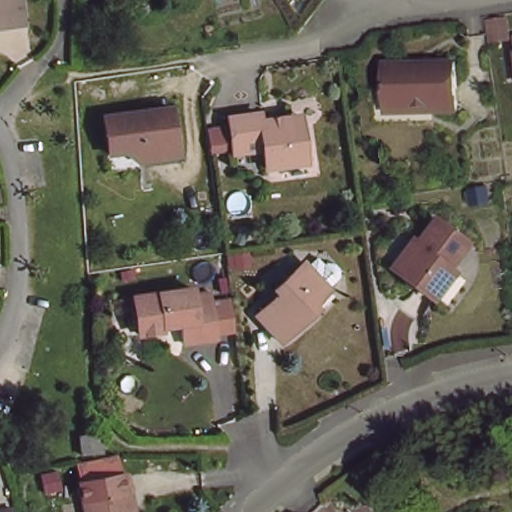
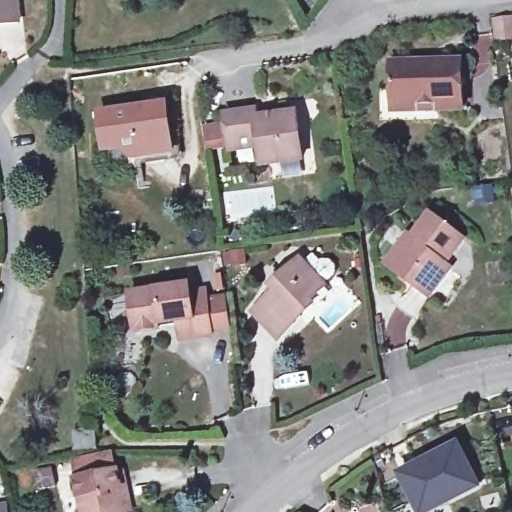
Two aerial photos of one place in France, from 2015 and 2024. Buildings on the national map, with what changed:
unchanged [(13,0),(15,28),(0,30),(0,0),(13,0)]
unchanged [(390,106),(391,64),(460,62),(460,112),(435,111),(390,111),(390,106)]
unchanged [(170,153),(132,160),(118,150),(100,151),(96,116),(163,106),(170,153)]
unchanged [(231,152),(230,148),(213,150),(211,129),(228,126),(226,117),(256,113),(257,120),(297,114),(305,160),(265,166),(261,148),(246,149),(231,152)]
unchanged [(385,265),(406,237),(411,240),(429,216),(461,240),(443,265),(450,270),(428,298),(385,265)]
unchanged [(299,316),(275,340),(250,314),(272,292),(268,287),(295,260),(300,264),(308,256),(315,262),(318,260),(322,259),(326,260),(329,261),(332,263),(334,269),(333,273),(331,278),(322,287),(307,301),(311,306),(299,316)]
unchanged [(130,310),(127,295),(135,293),(187,286),(187,293),(203,291),(205,299),(210,337),(176,340),(175,327),(161,329),(132,332),(130,310)]
unchanged [(95,447),(75,450),(73,431),(92,429),(95,447)]
new [(455,446),(476,486),(426,512),(418,512),(399,475),(455,446)]
unchanged [(73,480),(75,480),(72,460),(109,453),(112,473),(115,473),(123,512),(79,512),(73,480)]

